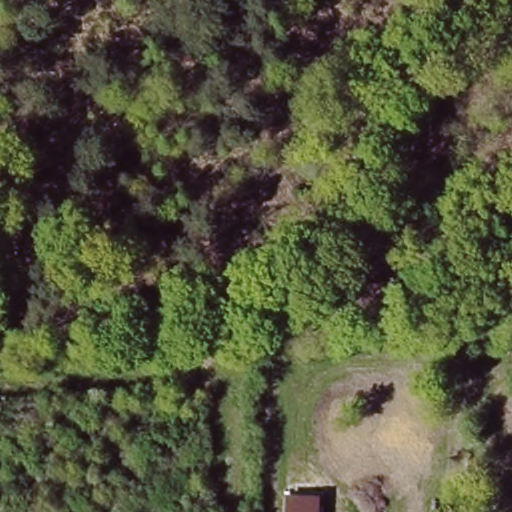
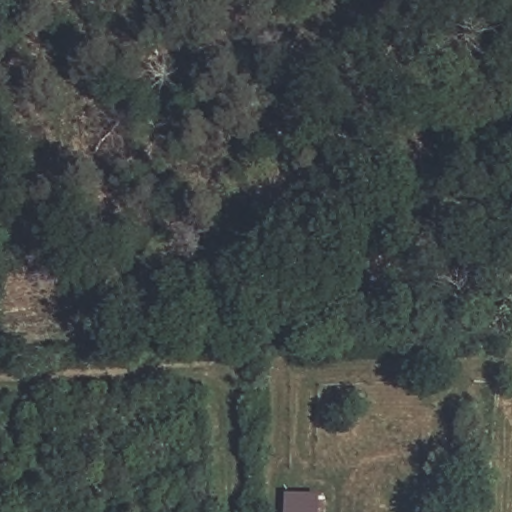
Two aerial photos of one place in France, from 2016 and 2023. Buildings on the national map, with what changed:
unchanged [(320,495),(319,512),(285,512),(286,495),(320,495)]

